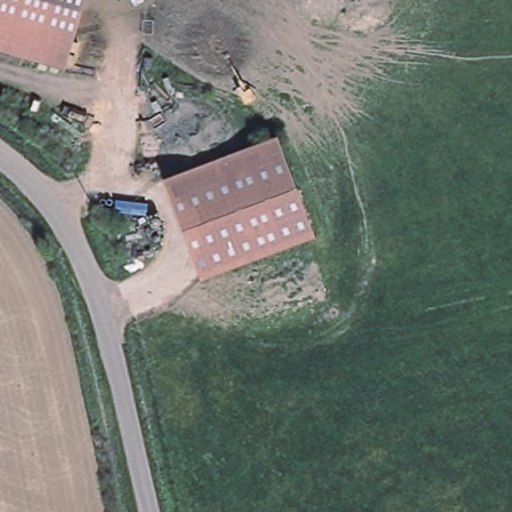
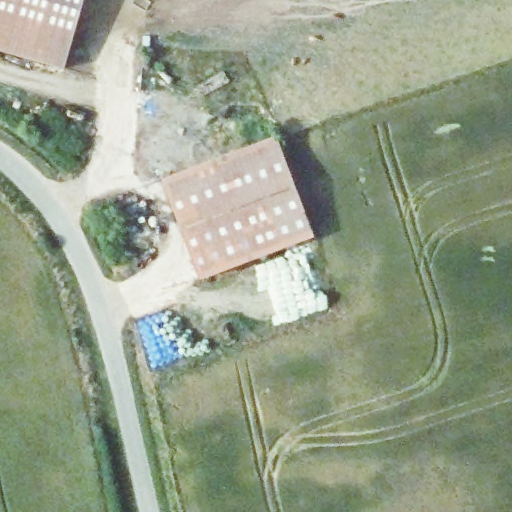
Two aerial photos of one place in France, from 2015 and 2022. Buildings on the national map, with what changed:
unchanged [(65,66),(0,48),(0,0),(84,0),(65,66)]
unchanged [(274,135),(311,234),(198,276),(160,177),(274,135)]

